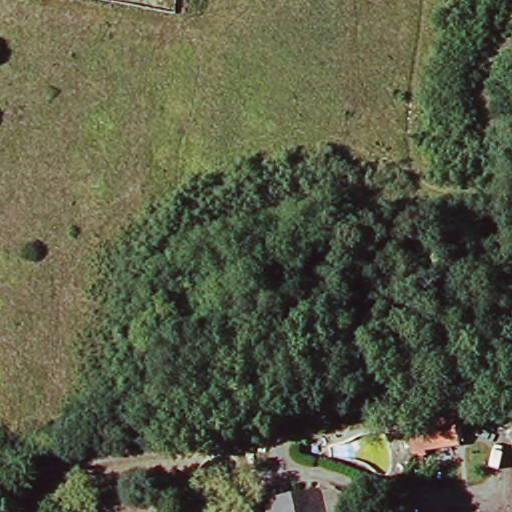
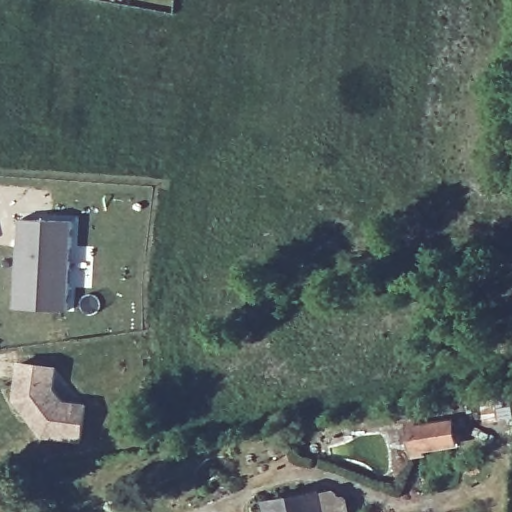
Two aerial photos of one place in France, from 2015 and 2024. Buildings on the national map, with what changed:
new [(17,307),(21,219),(74,222),(68,310),(17,307)]
new [(42,436),(13,397),(20,362),(57,367),(55,391),(65,402),(86,404),(84,443),(42,436)]
new [(511,392),(512,396),(512,417),(485,420),(482,396),(511,392)]
unchanged [(414,456),(410,432),(451,424),(455,448),(414,456)]
unchanged [(347,489),(350,512),(316,512),(313,495),(347,489)]
unchanged [(265,504),(313,495),(316,512),(266,512),(265,504)]

